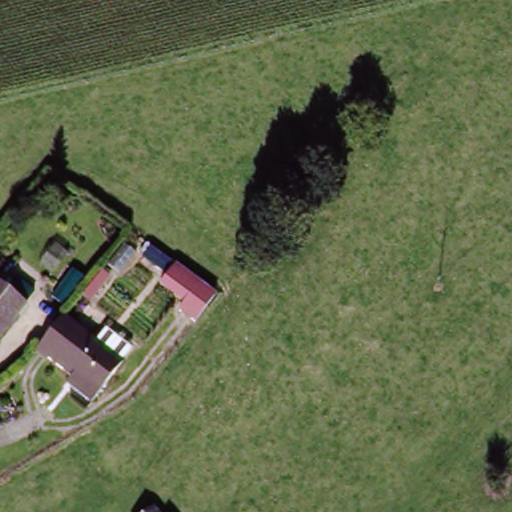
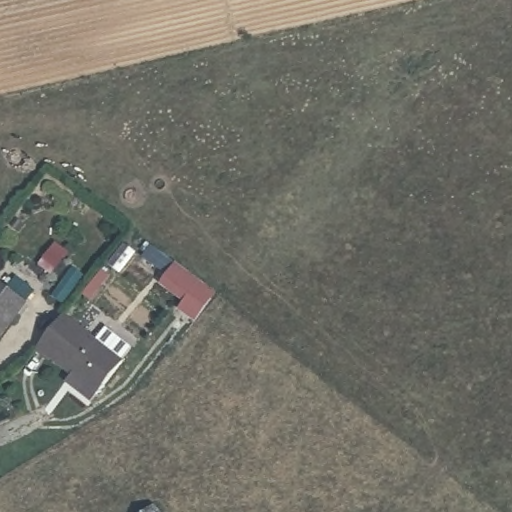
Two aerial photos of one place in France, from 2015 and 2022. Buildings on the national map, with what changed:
unchanged [(157,284),(173,263),(212,293),(187,324),(172,318),(177,311),(152,290),(157,284)]
unchanged [(0,333),(0,285),(24,302),(0,333)]
unchanged [(67,379),(72,374),(36,348),(62,314),(97,339),(106,327),(134,347),(125,359),(127,361),(100,395),(95,400),(67,379)]
unchanged [(153,501),(160,512),(137,512),(153,501)]

